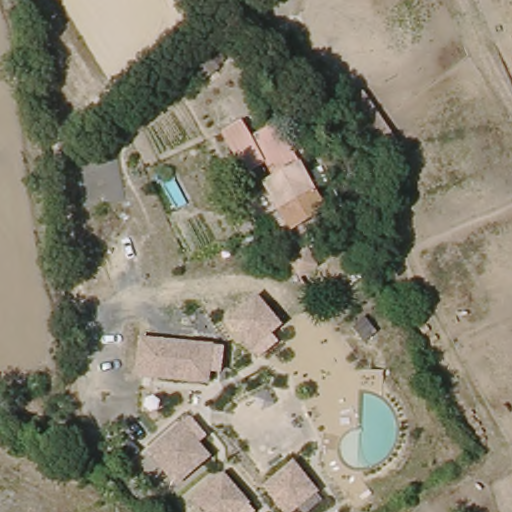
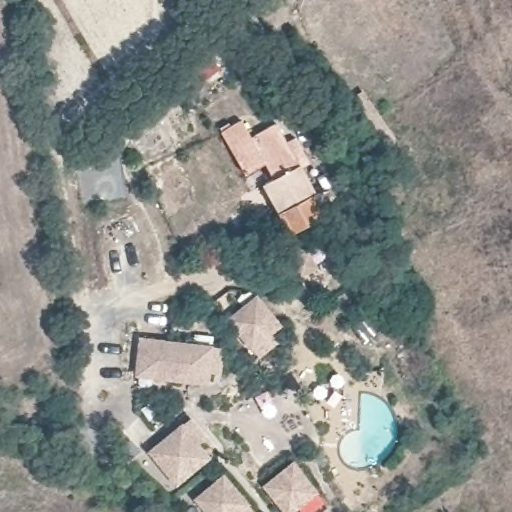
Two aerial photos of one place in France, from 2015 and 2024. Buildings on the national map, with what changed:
unchanged [(200,0),(215,0),(204,6),(200,0)]
unchanged [(285,57),(276,64),(266,73),(236,36),(256,20),(285,57)]
unchanged [(304,173),(271,190),(265,178),(276,172),(267,158),(247,168),(224,127),(245,114),(255,133),(280,119),(289,138),(294,135),(304,173)]
unchanged [(297,238),(290,226),(282,230),(270,210),(278,204),(271,190),(304,173),(323,207),(331,221),(297,238)]
unchanged [(253,353),(222,319),(255,295),(285,329),(253,353)]
unchanged [(209,387),(135,379),(138,339),(214,349),(209,387)]
unchanged [(375,383),(397,383),(397,413),(385,407),(375,406),(374,405),(375,383)]
unchanged [(177,490),(146,454),(179,426),(212,461),(177,490)]
unchanged [(297,512),(282,512),(262,489),(293,464),(317,497),(297,512)]
unchanged [(245,512),(203,512),(193,501),(225,473),(252,507),(245,512)]

